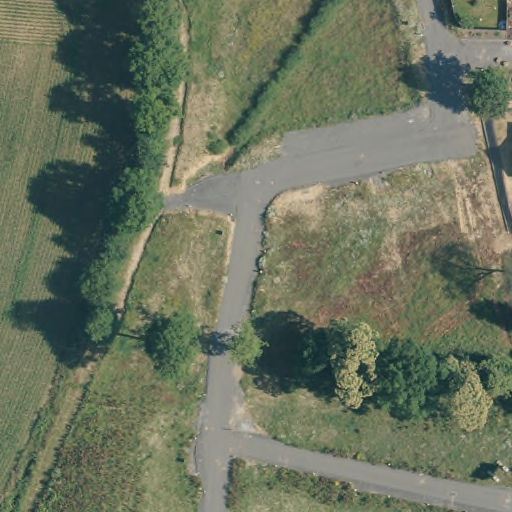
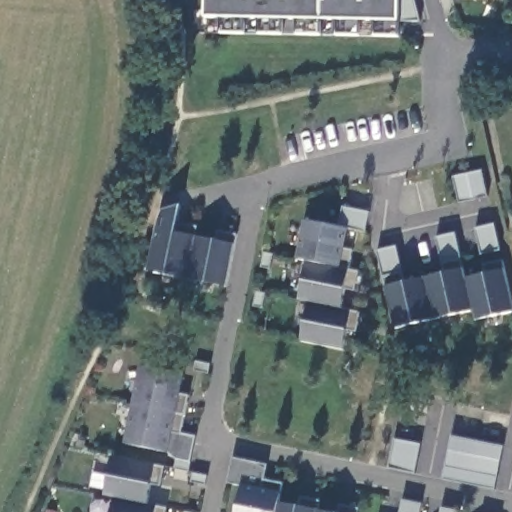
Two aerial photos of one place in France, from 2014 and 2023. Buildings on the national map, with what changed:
new [(400,21),(399,36),(374,36),(376,20),(360,20),(359,36),(336,35),(337,19),(322,19),(321,35),(297,35),(298,18),(284,18),(282,34),(258,34),(260,17),(245,17),(244,34),(220,32),(222,17),(205,17),(206,0),(415,0),(420,21),(400,21)]
new [(480,172),(486,199),(471,202),(457,206),(450,179),(465,175),(480,172)]
new [(366,232),(349,227),(344,247),(353,250),(349,269),(359,271),(355,291),(346,288),(341,308),(351,311),(360,312),(357,332),(348,330),(343,350),(300,342),(310,302),(299,300),(308,260),(297,257),(305,220),(340,227),(343,206),(370,212),(366,232)]
new [(227,286),(148,271),(158,228),(179,232),(181,222),(199,226),(197,236),(217,240),(219,231),(237,234),(235,244),(227,286)]
new [(491,222),(497,248),(478,252),(472,226),(491,222)]
new [(475,320),(473,310),(396,328),(386,286),(378,250),(397,246),(404,281),(445,271),(436,237),(456,232),(464,268),(466,277),(486,272),(484,264),(502,259),(504,269),(512,300),(512,311),(475,320)]
unchanged [(125,443),(140,365),(183,373),(180,393),(190,395),(182,433),(173,431),(169,451),(125,443)]
new [(495,490),(442,480),(451,435),(504,446),(495,490)]
new [(392,437),(419,443),(416,458),(413,473),(386,467),(389,452),(392,437)]
new [(105,494),(109,477),(113,457),(155,465),(164,467),(161,481),(160,487),(152,484),(148,504),(166,507),(166,512),(113,512),(116,496),(105,494)]
new [(257,486),(262,486),(264,479),(283,483),(282,487),(282,491),(280,502),(301,507),(303,497),(320,500),(318,509),(334,512),(237,512),(242,485),(257,486)]
new [(400,512),(402,499),(422,502),(420,512),(400,512)]
new [(340,512),(342,504),(359,507),(358,512),(340,512)]
new [(458,510),(457,512),(437,512),(438,506),(458,510)]

